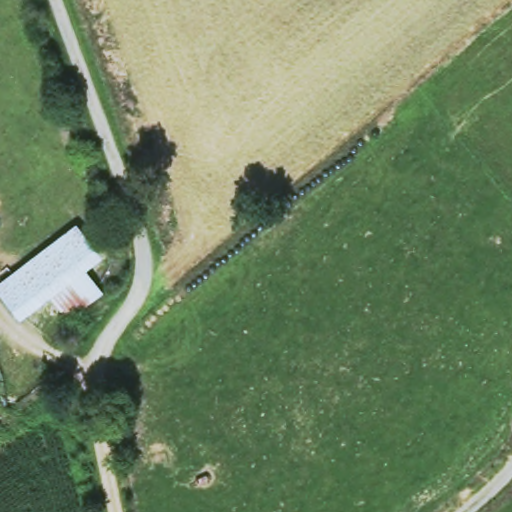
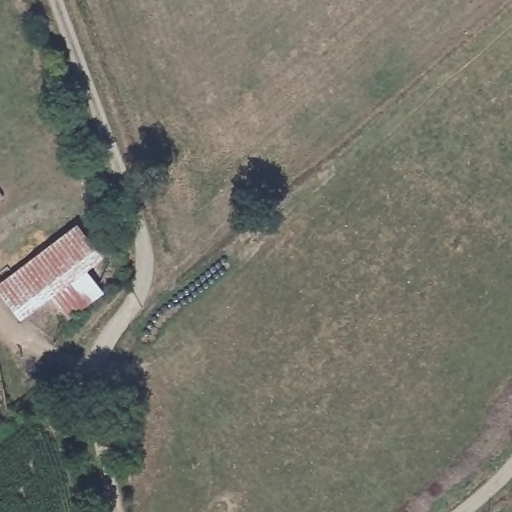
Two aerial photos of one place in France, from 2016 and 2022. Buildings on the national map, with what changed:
unchanged [(106,259),(88,271),(102,294),(66,321),(53,303),(19,326),(0,302),(0,282),(77,220),(106,259)]

